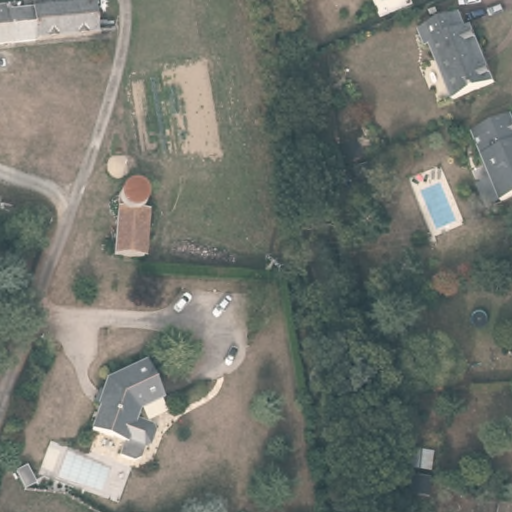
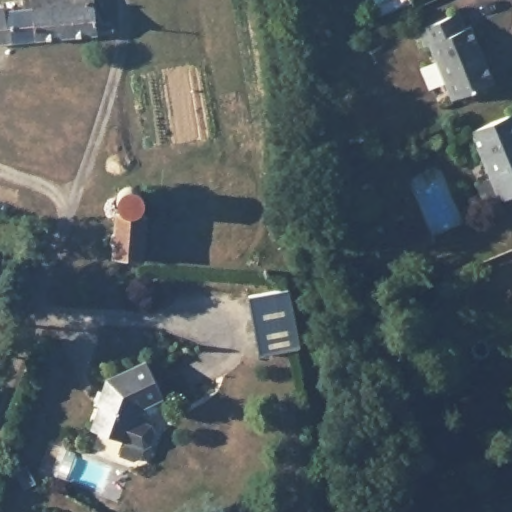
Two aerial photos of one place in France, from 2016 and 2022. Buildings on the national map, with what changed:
unchanged [(28,0),(88,0),(89,5),(115,4),(105,37),(33,43),(29,6),(28,0)]
unchanged [(0,2),(10,1),(10,9),(29,6),(33,43),(0,45),(0,2)]
unchanged [(469,32),(475,29),(499,84),(456,102),(433,49),(426,51),(418,34),(463,14),(469,32)]
unchanged [(511,192),(497,199),(469,130),(509,114),(512,122),(512,194),(511,192)]
unchanged [(116,255),(118,210),(123,210),(117,202),(119,192),(125,187),(134,185),(143,189),(146,193),(146,200),(145,208),(141,212),(151,214),(150,259),(116,255)]
new [(289,288),(302,347),(260,356),(249,295),(289,288)]
unchanged [(143,418),(158,424),(160,429),(155,444),(149,447),(146,456),(139,459),(125,454),(130,440),(94,427),(107,396),(99,393),(108,377),(139,354),(165,386),(163,391),(150,399),(143,418)]
new [(27,466),(36,483),(25,490),(15,472),(27,466)]
new [(412,477),(432,479),(429,495),(411,493),(412,477)]

